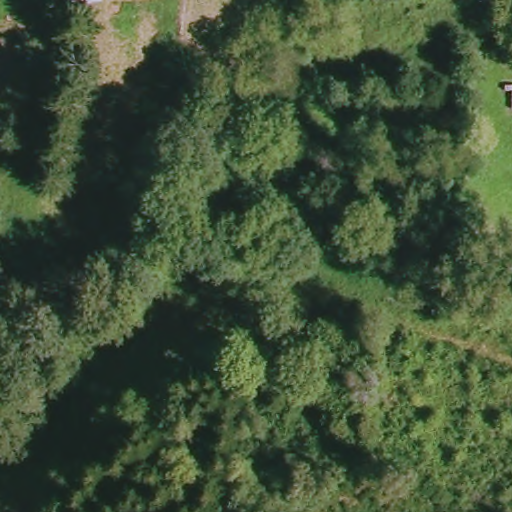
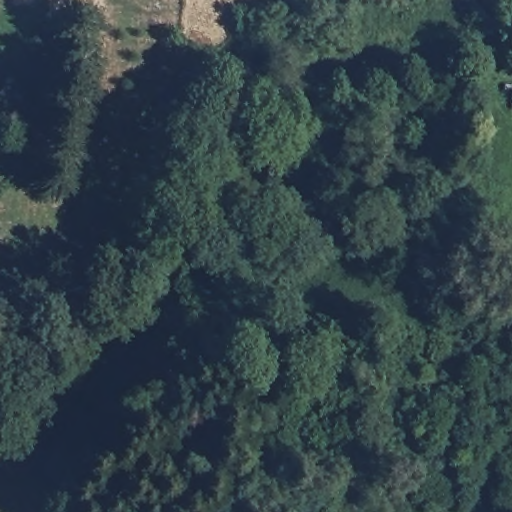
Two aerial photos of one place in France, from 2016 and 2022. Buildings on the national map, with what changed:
unchanged [(69,0),(108,0),(109,5),(70,9),(69,0)]

